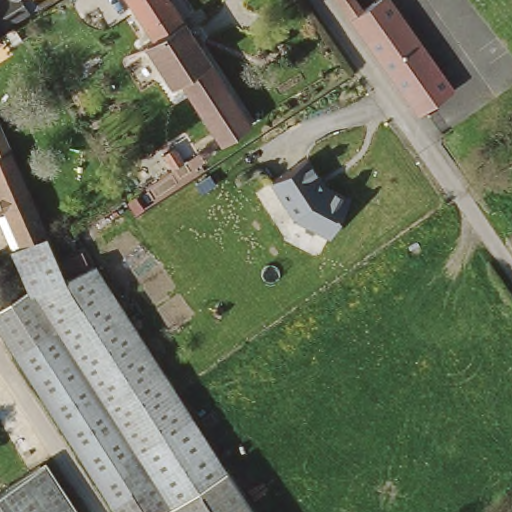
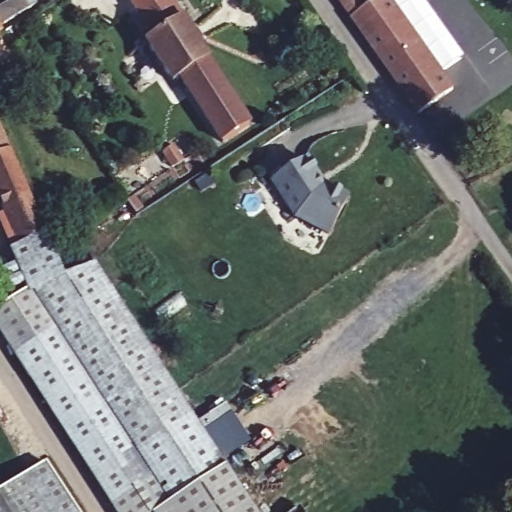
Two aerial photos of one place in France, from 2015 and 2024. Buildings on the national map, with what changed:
unchanged [(3,24),(0,19),(0,0),(38,0),(40,2),(3,24)]
unchanged [(178,81),(152,40),(159,35),(136,0),(179,0),(197,28),(202,29),(208,37),(205,40),(257,121),(227,140),(226,137),(185,76),(178,81)]
unchanged [(379,0),(394,0),(457,88),(422,113),(419,108),(342,0),(359,0),(366,10),(379,0)]
unchanged [(437,0),(448,0),(442,5),(437,0)]
unchanged [(0,35),(0,26),(4,32),(0,35)]
unchanged [(51,232),(27,247),(0,183),(0,116),(2,116),(7,130),(51,232)]
unchanged [(165,155),(175,149),(186,165),(176,172),(165,155)]
unchanged [(328,236),(292,220),(270,179),(311,156),(326,186),(352,194),(328,236)]
unchanged [(51,232),(70,277),(36,293),(30,296),(17,251),(27,247),(51,232)]
unchanged [(20,364),(65,336),(36,293),(70,277),(103,264),(105,267),(190,400),(167,416),(87,469),(20,364)]
unchanged [(0,313),(30,296),(36,293),(65,336),(20,364),(0,333),(0,313)]
unchanged [(232,465),(174,501),(157,512),(115,512),(87,469),(167,416),(190,400),(230,462),(232,464),(232,465)]
unchanged [(0,492),(49,459),(59,475),(84,512),(0,512),(0,492)]
unchanged [(232,465),(232,464),(262,512),(181,512),(174,501),(232,465)]
unchanged [(181,512),(157,512),(174,501),(181,512)]

